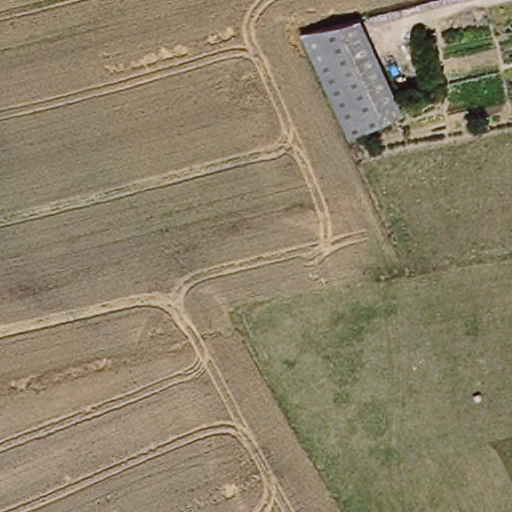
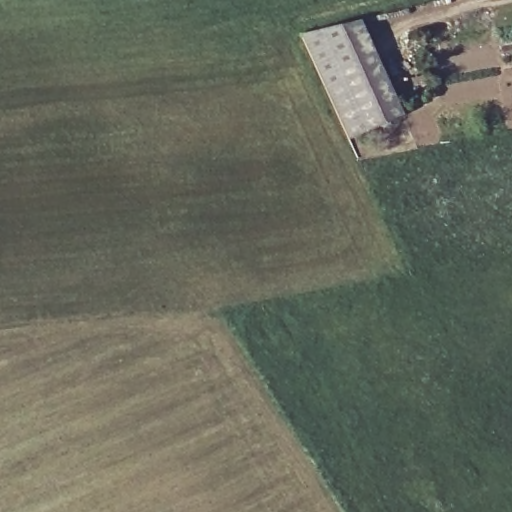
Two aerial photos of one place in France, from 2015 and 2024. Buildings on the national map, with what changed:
unchanged [(302,38),(359,23),(402,120),(350,144),(302,38)]

